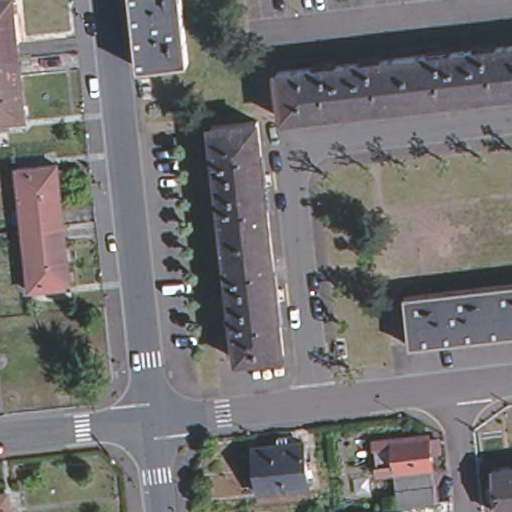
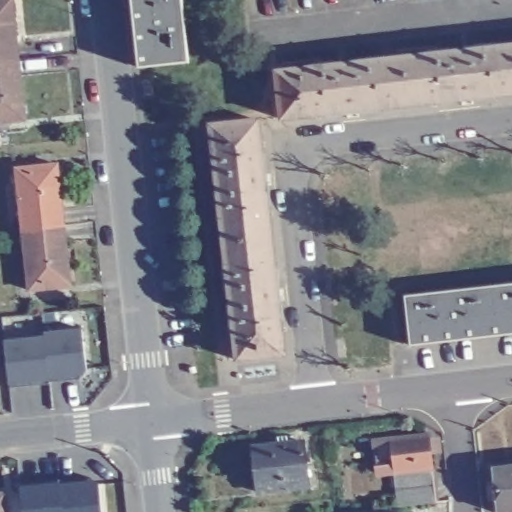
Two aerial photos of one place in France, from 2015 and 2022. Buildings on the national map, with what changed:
unchanged [(0,1),(9,0),(15,60),(0,62),(0,1)]
unchanged [(178,0),(185,69),(142,73),(135,74),(127,0),(178,0)]
unchanged [(495,95),(444,101),(444,104),(380,111),(379,109),(327,115),(327,117),(284,122),(278,75),(512,49),(512,96),(495,98),(495,95)]
unchanged [(0,124),(0,62),(15,60),(22,122),(0,124)]
unchanged [(240,362),(213,130),(258,125),(285,357),(240,362)]
unchanged [(18,173),(60,169),(66,230),(24,234),(18,173)]
unchanged [(66,230),(72,289),(30,293),(24,234),(66,230)]
unchanged [(410,347),(405,300),(512,287),(512,336),(410,347)]
new [(45,337),(45,332),(81,330),(85,371),(78,380),(9,386),(4,340),(45,337)]
unchanged [(404,490),(393,490),(392,476),(375,478),(372,445),(389,442),(426,438),(427,445),(435,445),(436,455),(427,456),(429,471),(430,487),(432,506),(405,509),(404,490)]
unchanged [(307,490),(256,495),(253,449),(302,444),(307,490)]
unchanged [(487,472),(512,470),(512,512),(491,512),(487,472)]
new [(98,482),(101,512),(23,512),(20,487),(98,482)]
unchanged [(10,512),(0,512),(0,498),(9,497),(10,512)]

